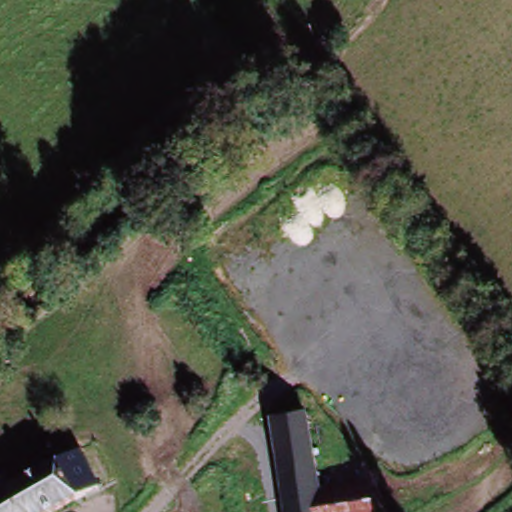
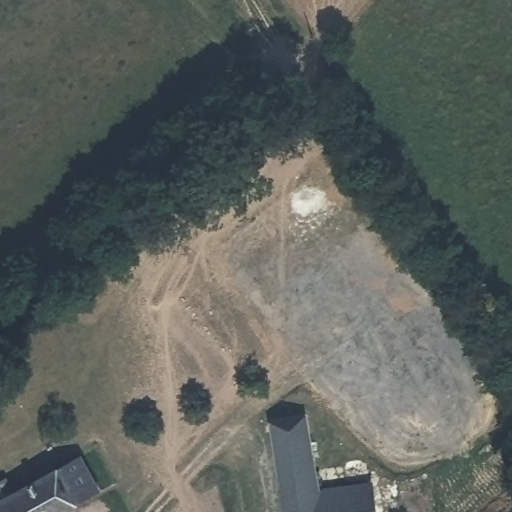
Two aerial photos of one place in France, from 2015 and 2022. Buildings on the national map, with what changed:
unchanged [(272,425),(312,419),(322,494),(325,512),(285,512),(272,425)]
unchanged [(60,470),(81,457),(102,497),(79,510),(60,470)]
unchanged [(0,503),(7,498),(0,487),(16,478),(23,493),(60,470),(79,510),(76,512),(0,512),(0,503)]
unchanged [(322,494),(367,487),(371,512),(325,512),(322,494)]

